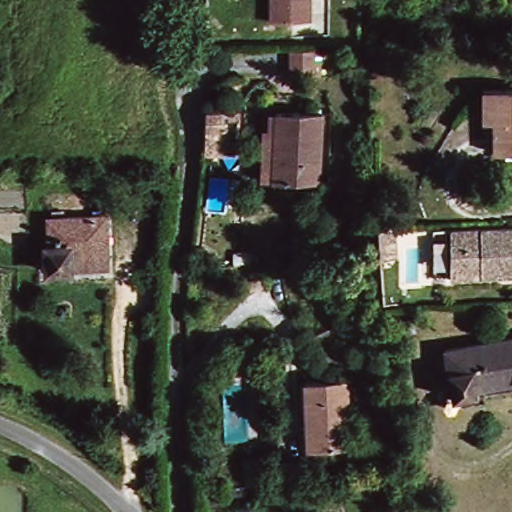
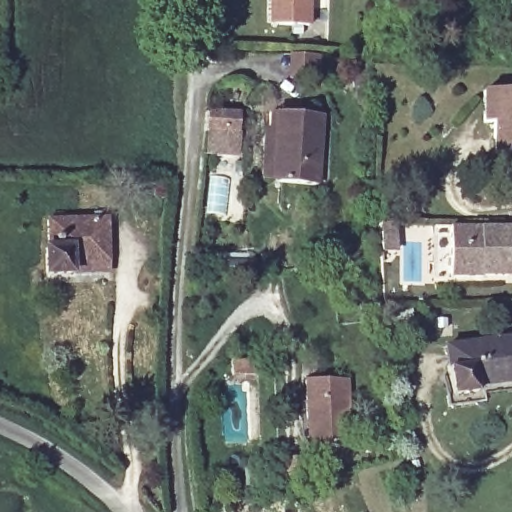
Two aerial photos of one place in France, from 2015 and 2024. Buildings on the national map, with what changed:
unchanged [(270,26),(270,0),(309,0),(309,25),(270,26)]
unchanged [(293,56),(322,55),(322,81),(293,80),(293,56)]
unchanged [(481,92),(512,90),(512,152),(492,153),(491,121),(482,121),(481,92)]
unchanged [(221,135),(202,135),(204,115),(221,115),(221,135)]
unchanged [(319,184),(259,182),(260,136),(267,136),(267,115),(321,116),(319,184)]
unchanged [(112,225),(110,268),(71,266),(71,277),(47,275),(49,250),(51,250),(52,221),(112,225)]
unchanged [(377,254),(377,236),(377,227),(392,227),(392,236),(392,253),(377,254)]
unchanged [(512,227),(512,270),(510,271),(510,276),(435,277),(435,227),(512,227)]
unchanged [(512,338),(512,384),(477,389),(477,393),(452,401),(446,369),(442,347),(512,338)]
unchanged [(251,362),(250,373),(226,375),(226,363),(251,362)]
unchanged [(306,420),(304,381),(347,378),(351,445),(314,447),(307,447),(306,420)]
unchanged [(301,481),(273,482),(273,458),(302,458),(301,481)]

